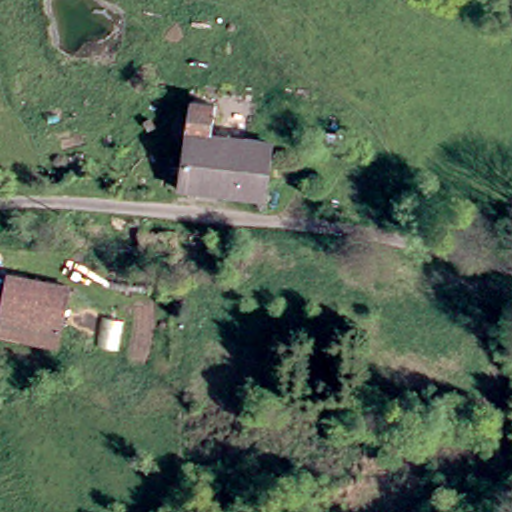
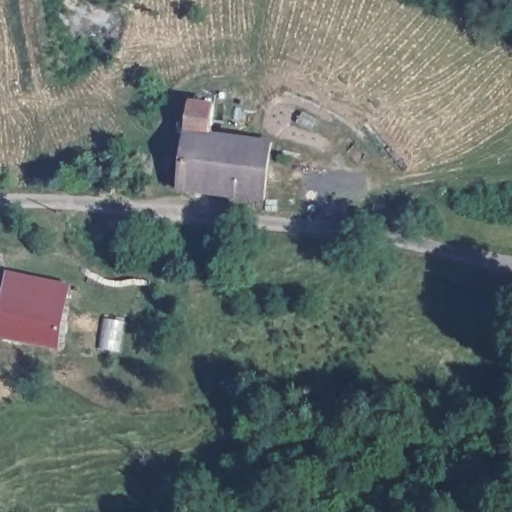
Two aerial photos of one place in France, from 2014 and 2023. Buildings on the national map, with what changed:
unchanged [(217,104),(213,137),(279,145),(272,201),(187,191),(195,101),(217,104)]
unchanged [(182,233),(182,260),(142,257),(144,231),(182,233)]
unchanged [(63,352),(3,338),(13,280),(75,288),(63,352)]

